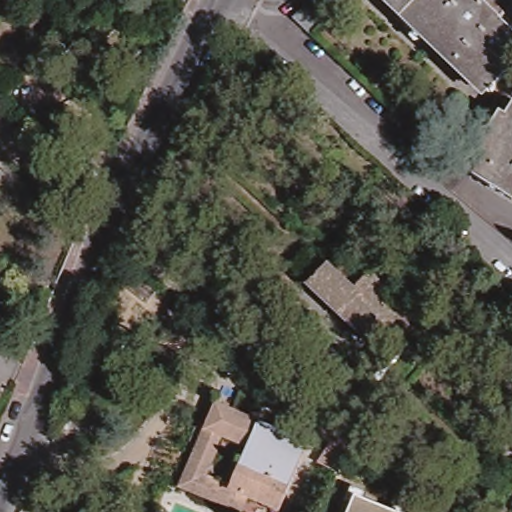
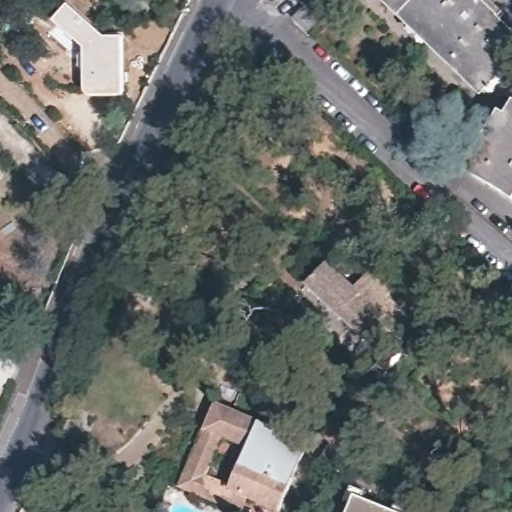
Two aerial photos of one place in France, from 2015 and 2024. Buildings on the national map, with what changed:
unchanged [(505,17),(500,24),(512,37),(512,74),(490,97),(387,0),(487,0),(505,17)]
new [(68,3),(104,35),(124,36),(126,97),(85,98),(82,48),(73,42),(54,27),(51,23),(68,3)]
unchanged [(323,21),(311,34),(310,35),(292,18),(305,5),(323,21)]
unchanged [(475,174),(512,114),(512,197),(475,174)]
unchanged [(418,326),(403,343),(387,327),(370,345),(308,285),(329,262),(355,288),(372,272),(393,292),(388,297),(418,326)]
unchanged [(158,291),(149,302),(125,283),(134,272),(158,291)]
unchanged [(86,445),(61,435),(74,403),(99,415),(86,445)]
unchanged [(236,490),(238,486),(255,447),(231,436),(212,428),(223,403),(314,442),(286,510),(257,498),(236,490)]
unchanged [(354,442),(341,472),(319,463),(335,440),(320,427),(326,420),(354,442)]
unchanged [(244,512),(187,487),(212,428),(231,436),(214,476),(238,486),(236,490),(257,498),(251,512),(244,512)]
unchanged [(391,512),(352,512),(358,498),(391,512)]

